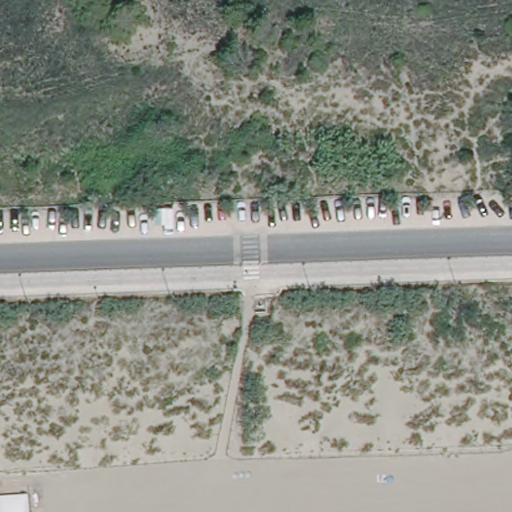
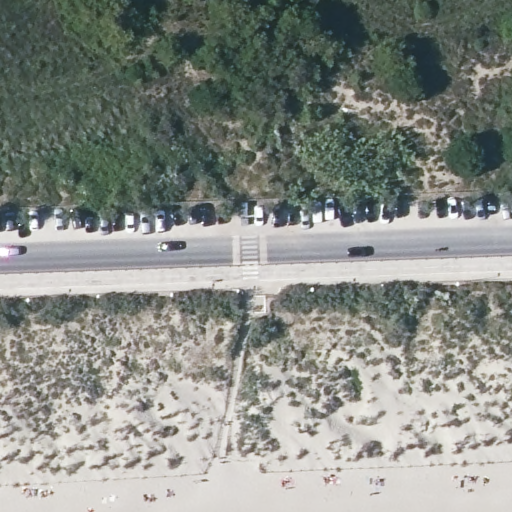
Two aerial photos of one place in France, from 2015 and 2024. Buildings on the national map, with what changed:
demolished [(25,512),(0,512),(0,497),(23,496),(25,512)]

